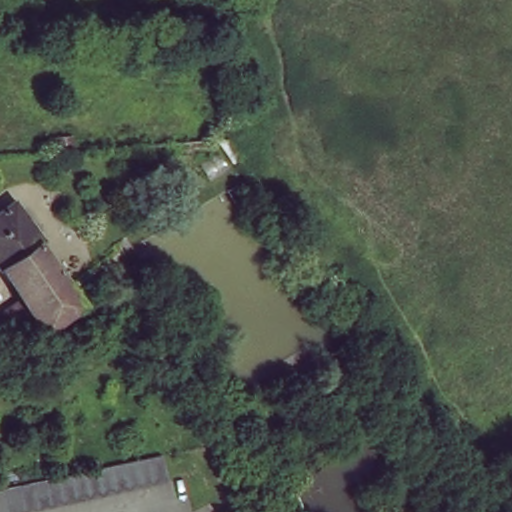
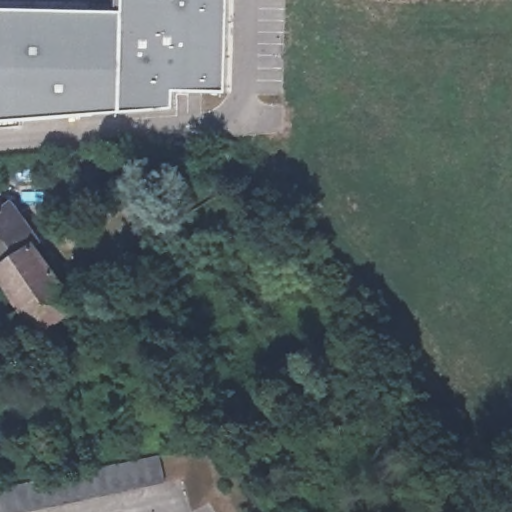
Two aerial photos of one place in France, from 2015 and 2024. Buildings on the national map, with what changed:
new [(0,123),(0,8),(115,11),(115,0),(229,0),(226,93),(175,92),(174,110),(0,123)]
unchanged [(3,317),(15,308),(0,288),(0,220),(15,209),(50,251),(43,257),(82,309),(28,350),(15,332),(3,317)]
unchanged [(157,463),(162,491),(51,512),(0,512),(0,494),(157,463)]

